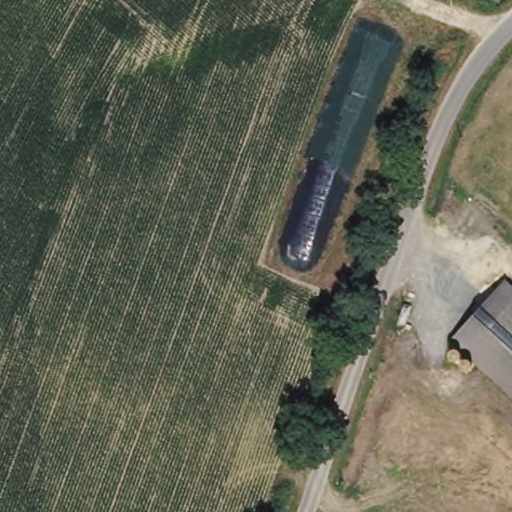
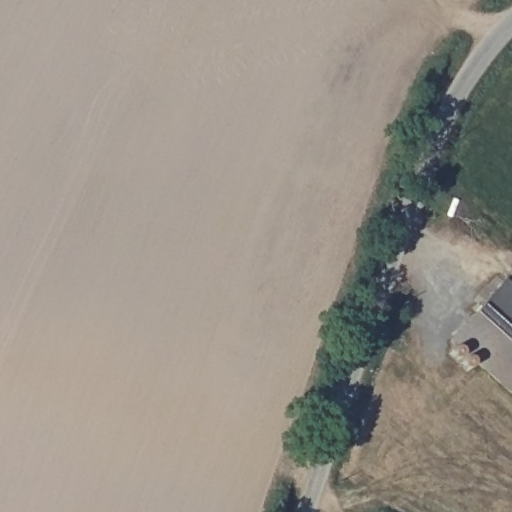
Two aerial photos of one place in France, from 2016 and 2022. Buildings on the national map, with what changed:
unchanged [(507,277),(512,281),(512,386),(455,332),(507,277)]

